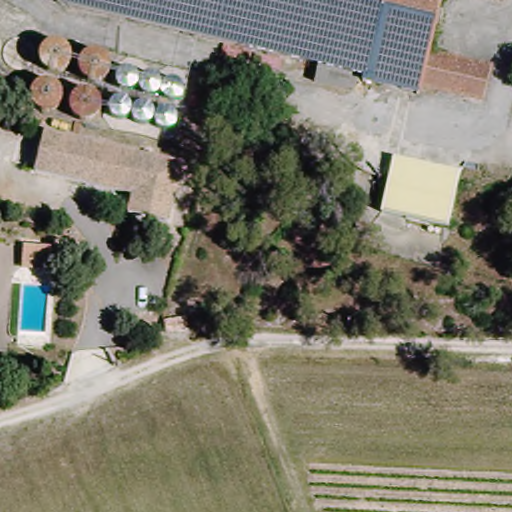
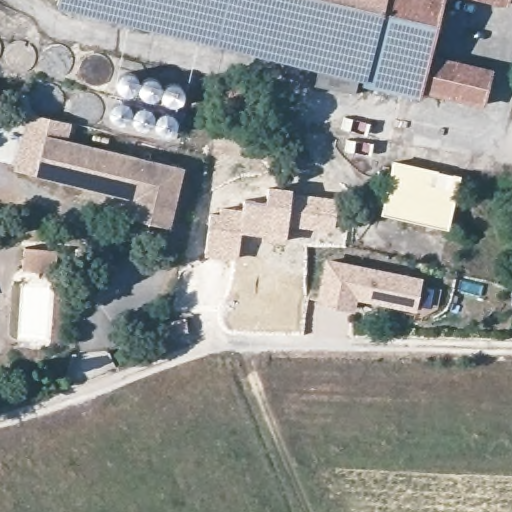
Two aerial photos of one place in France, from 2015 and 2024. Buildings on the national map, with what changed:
unchanged [(505,68),(497,102),(433,87),(431,94),(379,82),(380,75),(369,71),(364,91),(327,82),(331,65),(70,2),(71,0),(455,0),(443,54),(505,68)]
unchanged [(74,63),(72,70),(66,76),(58,79),(50,78),(45,75),(41,69),(39,62),(41,55),(43,51),(47,47),(53,44),(61,44),(69,49),(73,55),(74,62),(74,63)]
unchanged [(36,66),(32,74),(26,77),(18,78),(12,75),(8,68),(7,62),(10,55),(17,50),(24,50),(30,51),(35,57),(36,65),(36,66)]
unchanged [(111,74),(109,81),(105,85),(100,88),(95,88),(88,86),(83,81),(81,73),(84,65),(90,60),(96,58),(101,59),(107,62),(110,66),(111,74)]
unchanged [(145,85),(142,91),(137,95),(130,96),(123,94),(118,89),(116,81),(117,75),(121,70),(126,66),(136,66),(141,70),(145,75),(146,81),(145,85)]
unchanged [(185,90),(180,96),(175,99),(166,99),(159,94),(156,89),(156,83),(157,76),(162,71),(169,69),(177,70),(183,74),(185,79),(186,84),(185,90)]
unchanged [(235,84),(227,114),(207,108),(214,79),(235,84)]
unchanged [(41,92),(47,89),(52,88),(58,89),(62,92),(65,97),(65,104),(63,110),(58,114),(52,116),(46,115),(41,111),(38,106),(38,100),(39,96),(41,92)]
unchanged [(101,115),(100,119),(96,124),(90,126),(84,126),(79,124),(75,117),(75,110),(78,104),(84,100),(89,100),(95,101),(97,104),(101,108),(101,114),(101,115)]
unchanged [(127,135),(119,135),(113,133),(109,127),(108,120),(110,113),(115,109),(121,106),(129,107),(133,110),(137,115),(138,121),(136,128),(133,132),(128,135),(127,135)]
unchanged [(158,141),(151,137),(147,130),(147,121),(151,114),(156,110),(162,109),(169,110),(174,114),(178,120),(179,126),(177,132),(172,138),(167,141),(158,141)]
unchanged [(178,167),(163,226),(122,215),(127,196),(30,171),(41,133),(178,167)]
unchanged [(459,175),(446,232),(380,217),(392,161),(459,175)]
new [(288,226),(287,240),(241,235),(238,260),(205,256),(210,210),(220,211),(221,205),(243,207),(243,200),(267,202),(269,185),(292,187),(292,192),(339,197),(335,231),(288,226)]
unchanged [(59,245),(56,270),(23,267),(26,242),(59,245)]
new [(358,297),(356,311),(318,303),(328,260),(423,278),(416,312),(358,297)]
unchanged [(174,322),(188,320),(190,330),(175,332),(174,322)]

